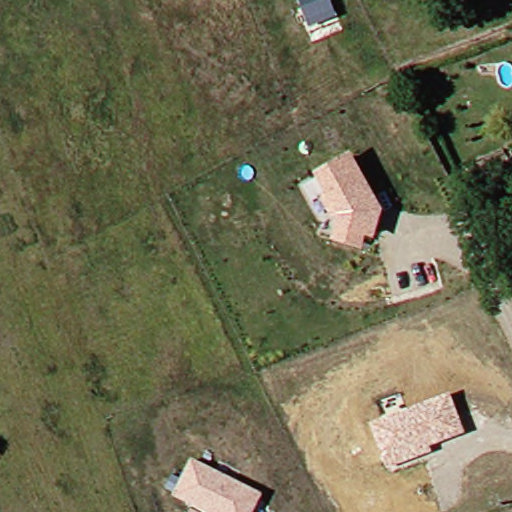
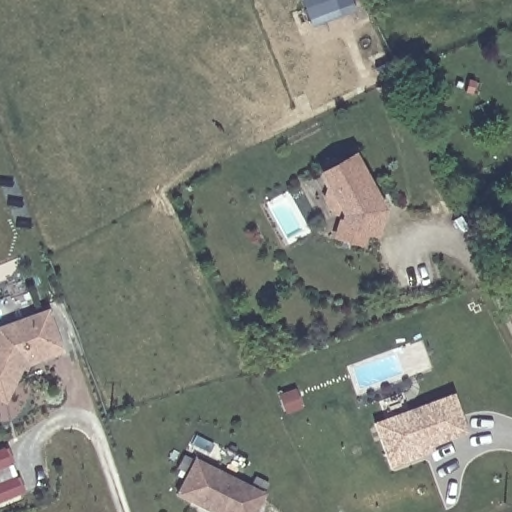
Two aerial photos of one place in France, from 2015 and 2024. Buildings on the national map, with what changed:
new [(301,0),(349,0),(354,13),(312,29),(301,0)]
unchanged [(352,152),(384,211),(374,241),(364,237),(362,247),(330,238),(338,216),(331,219),(319,197),(325,195),(313,173),(352,152)]
new [(60,353),(21,370),(4,405),(0,403),(0,325),(46,308),(60,353)]
unchanged [(407,412),(450,397),(463,432),(428,445),(431,450),(391,464),(374,425),(380,422),(376,405),(401,393),(407,412)]
new [(23,496),(0,505),(0,450),(4,448),(23,496)]
unchanged [(263,492),(254,512),(204,512),(172,497),(190,457),(263,492)]

